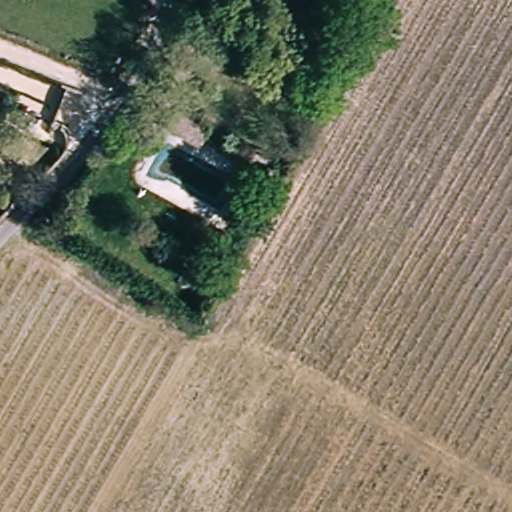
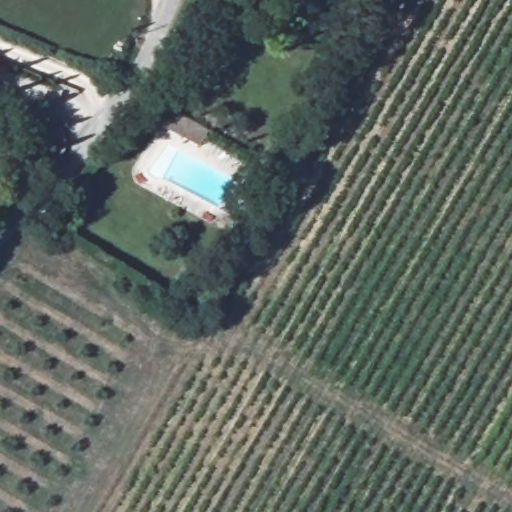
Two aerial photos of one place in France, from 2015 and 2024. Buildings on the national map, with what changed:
unchanged [(207,150),(168,131),(178,111),(217,129),(207,150)]

